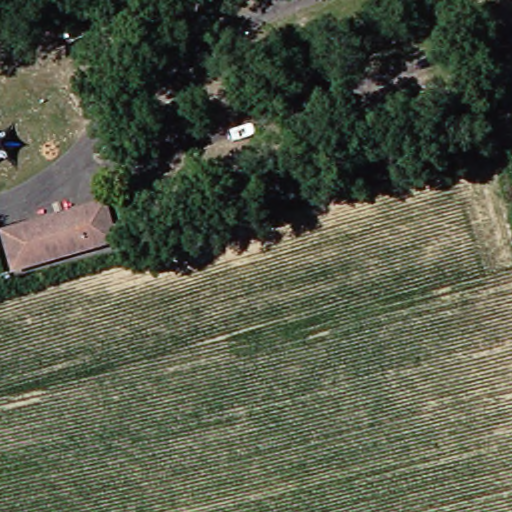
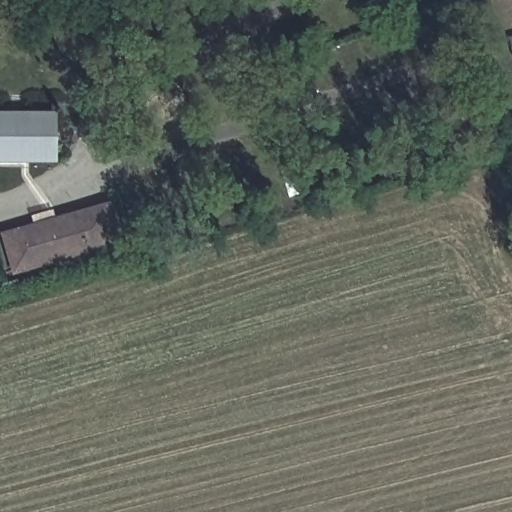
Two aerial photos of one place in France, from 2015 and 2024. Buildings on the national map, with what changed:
new [(58,162),(0,162),(0,111),(56,111),(58,162)]
unchanged [(118,239),(21,266),(12,234),(32,228),(87,213),(110,207),(118,239)]

